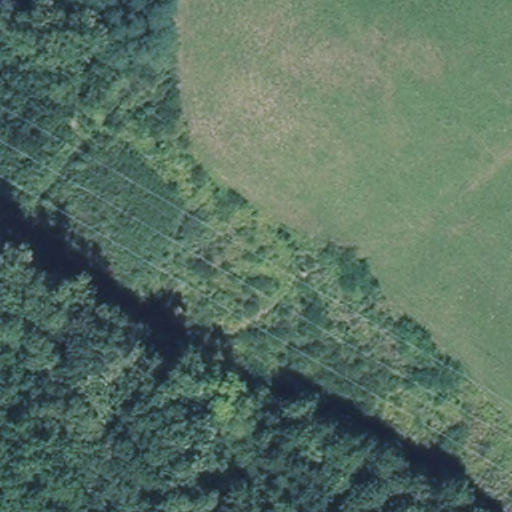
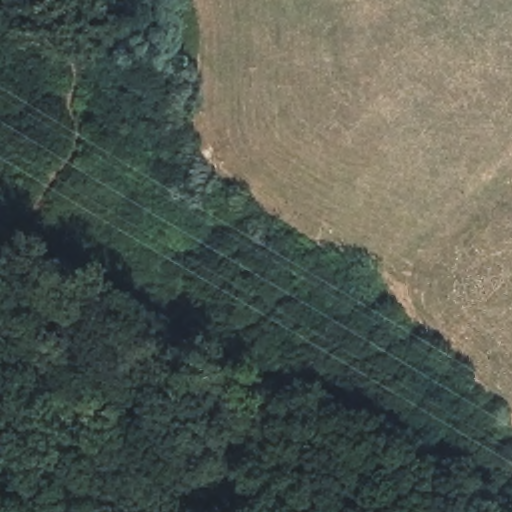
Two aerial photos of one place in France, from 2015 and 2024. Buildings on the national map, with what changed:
[]

